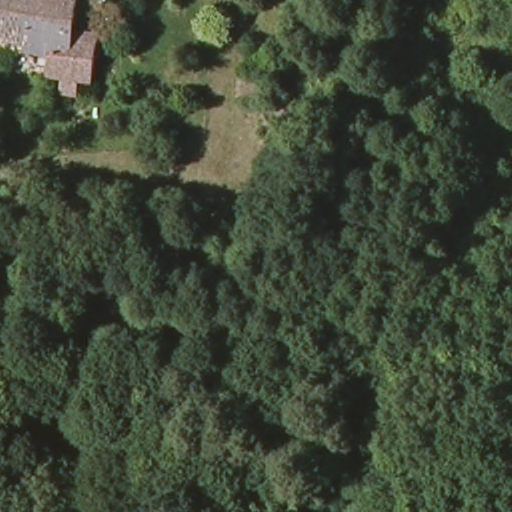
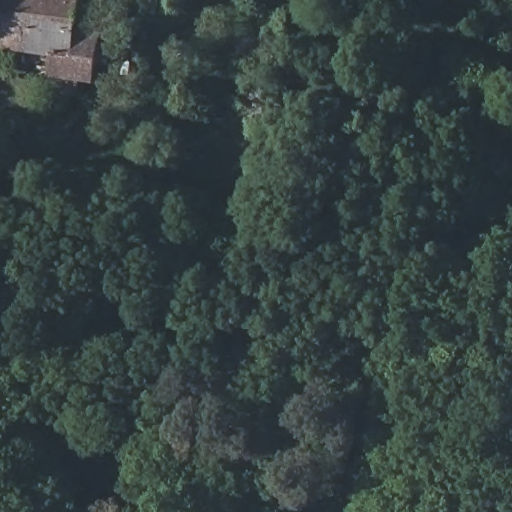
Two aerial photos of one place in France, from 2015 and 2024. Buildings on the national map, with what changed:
unchanged [(80,34),(106,37),(101,83),(95,81),(89,101),(79,98),(80,82),(52,77),(54,54),(0,48),(0,4),(1,0),(83,0),(80,34)]

